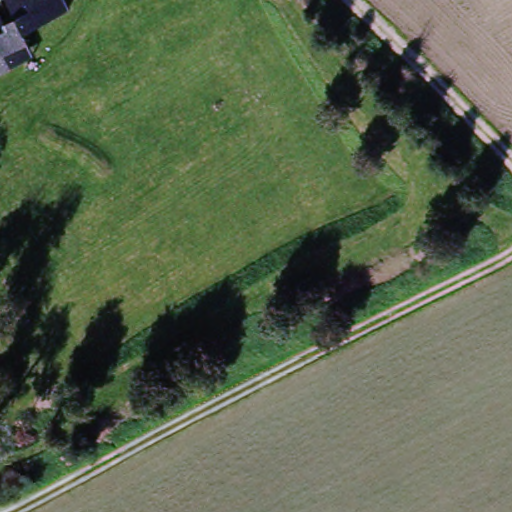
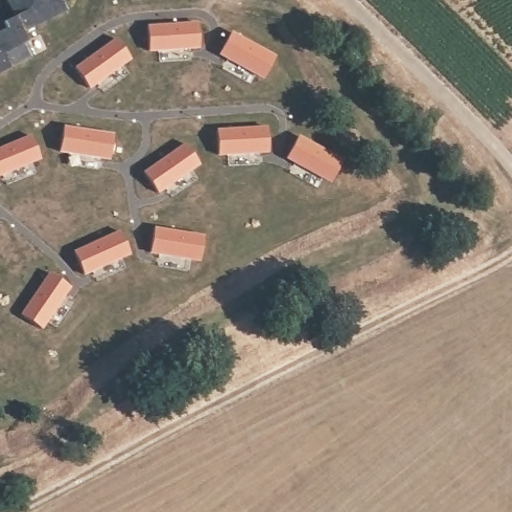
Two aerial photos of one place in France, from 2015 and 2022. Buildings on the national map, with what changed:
unchanged [(25,41),(32,58),(0,74),(0,14),(4,12),(1,0),(63,0),(68,12),(25,41)]
new [(201,49),(149,54),(145,24),(197,21),(201,49)]
new [(277,55),(265,80),(218,55),(232,31),(277,55)]
new [(132,59),(90,89),(74,66),(115,36),(132,59)]
new [(115,133),(112,160),(60,154),(63,125),(115,133)]
new [(268,125),(271,154),(218,158),(215,129),(268,125)]
new [(42,160),(0,178),(0,146),(30,133),(42,160)]
new [(346,160),(334,184),(285,160),(299,134),(346,160)]
new [(200,164),(158,194),(142,171),(185,141),(200,164)]
new [(206,234),(202,262),(151,254),(153,226),(206,234)]
new [(131,256),(85,275),(72,250),(119,229),(131,256)]
new [(73,289),(45,331),(20,315),(49,272),(73,289)]

